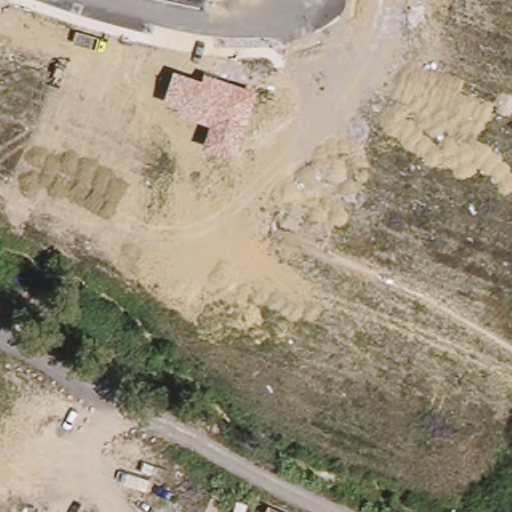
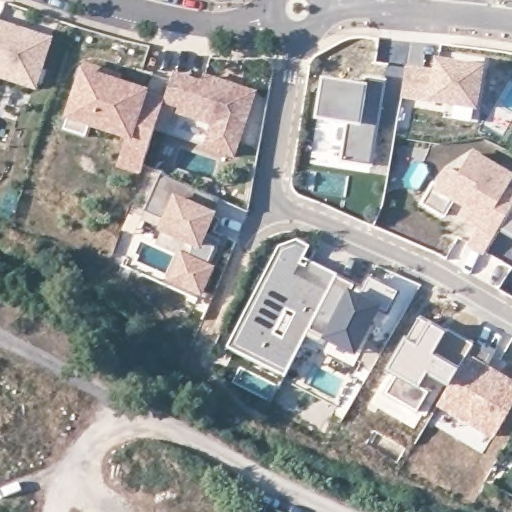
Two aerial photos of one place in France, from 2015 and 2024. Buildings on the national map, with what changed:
new [(37,88),(1,79),(0,81),(0,20),(53,36),(37,88)]
new [(85,61),(123,73),(122,80),(165,96),(162,104),(179,107),(177,115),(174,115),(168,134),(154,130),(141,174),(118,166),(127,140),(90,128),(87,140),(62,130),(85,61)]
new [(406,68),(435,73),(437,61),(486,69),(477,122),(443,117),(445,102),(401,95),(406,68)]
unchanged [(173,71),(203,81),(206,74),(258,91),(237,158),(203,147),(211,125),(177,115),(179,107),(162,104),(173,71)]
new [(323,80),(364,86),(365,78),(384,81),(370,165),(342,160),(348,122),(317,117),(323,80)]
new [(438,189),(450,168),(461,175),(474,154),(512,176),(505,189),(512,192),(512,208),(500,229),(485,254),(470,245),(482,226),(463,215),(468,206),(438,189)]
new [(141,220),(145,211),(162,173),(220,200),(203,237),(218,244),(207,267),(210,268),(200,293),(171,280),(182,257),(155,245),(162,229),(141,220)]
new [(453,199),(443,215),(423,204),(433,186),(438,189),(453,199)]
new [(500,229),(512,208),(512,237),(500,229)]
new [(351,294),(360,298),(370,278),(398,293),(388,313),(371,305),(367,312),(374,316),(358,348),(330,335),(328,340),(309,330),(289,371),(281,367),(288,355),(262,341),(255,354),(235,344),(283,250),(297,245),(308,250),(304,257),(338,275),(337,276),(355,286),(351,294)]
new [(420,316),(430,322),(449,332),(474,345),(460,368),(449,387),(429,376),(422,389),(432,393),(419,415),(385,396),(396,378),(385,372),(406,337),(420,316)]
new [(474,345),(492,355),(484,367),(512,384),(512,404),(493,437),(438,405),(474,345)]

